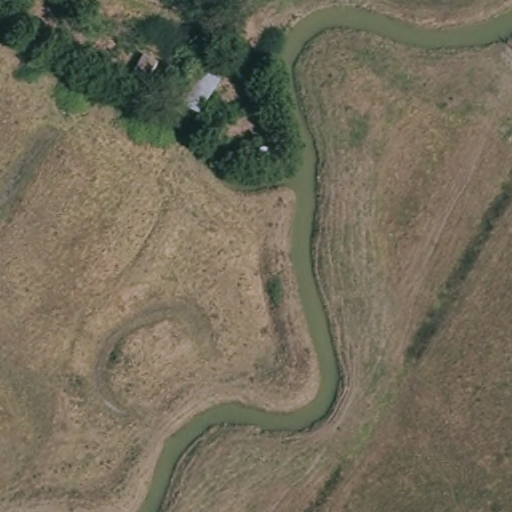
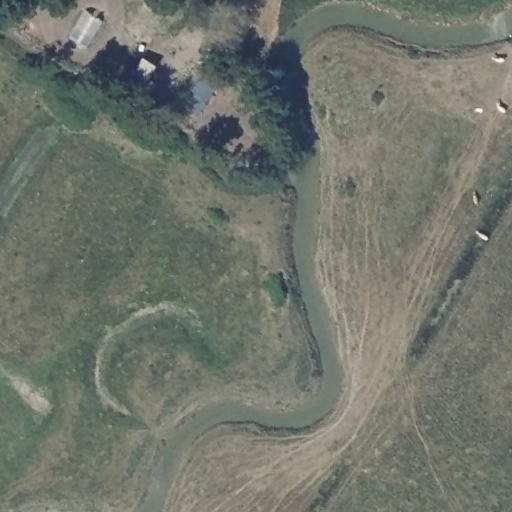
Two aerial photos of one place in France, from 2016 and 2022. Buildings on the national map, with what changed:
unchanged [(201,120),(181,107),(209,58),(235,71),(201,120)]
unchanged [(175,72),(163,91),(150,84),(163,64),(175,72)]

